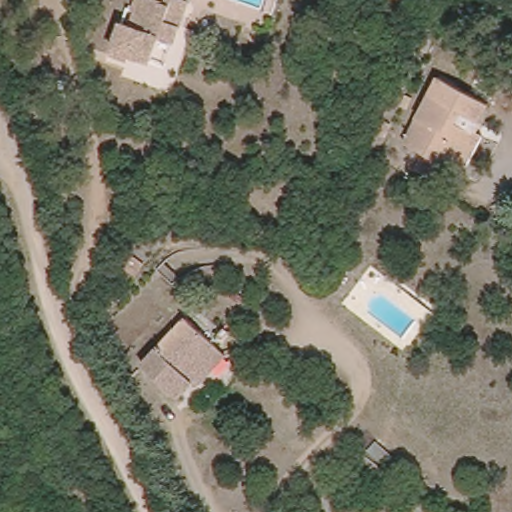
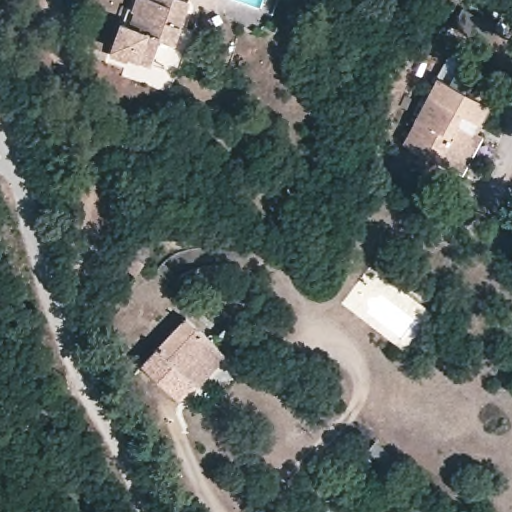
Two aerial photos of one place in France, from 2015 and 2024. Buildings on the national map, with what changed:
unchanged [(167,48),(154,43),(146,67),(107,52),(116,27),(127,31),(132,17),(127,15),(133,0),(140,0),(150,4),(151,0),(170,0),(183,5),(167,48)]
unchanged [(458,164),(407,136),(443,71),(493,98),(458,164)]
unchanged [(224,350),(184,399),(144,363),(185,315),(224,350)]
unchanged [(393,473),(367,450),(376,441),(401,464),(393,473)]

